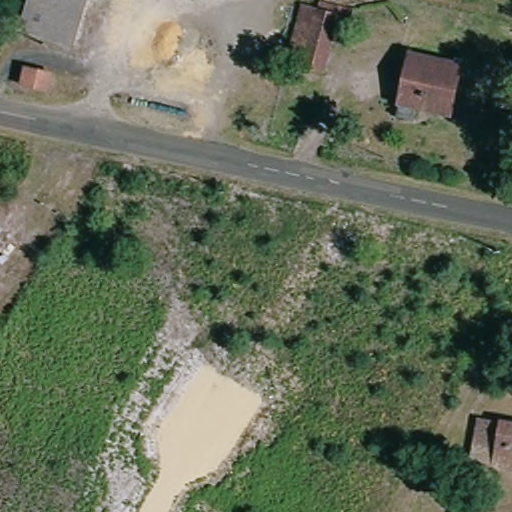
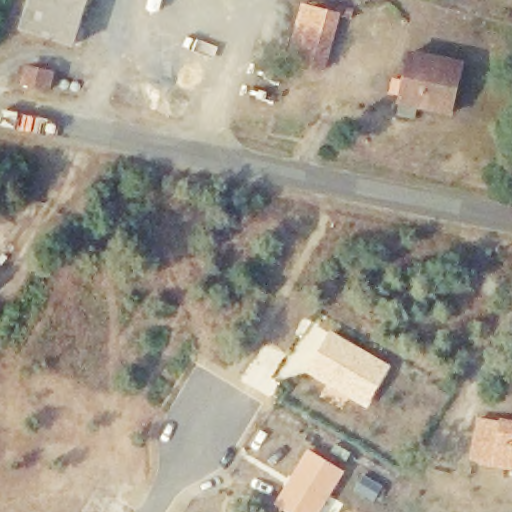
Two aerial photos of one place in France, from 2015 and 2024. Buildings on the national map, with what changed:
unchanged [(67,44),(16,27),(25,0),(82,0),(67,44)]
unchanged [(326,77),(286,69),(301,5),(340,14),(326,77)]
unchanged [(403,102),(415,59),(460,69),(446,112),(403,102)]
new [(329,330),(391,365),(367,408),(305,371),(329,330)]
unchanged [(474,463),(480,415),(496,419),(512,421),(512,470),(493,466),(474,463)]
new [(320,512),(284,512),(274,507),(307,451),(343,472),(320,512)]

